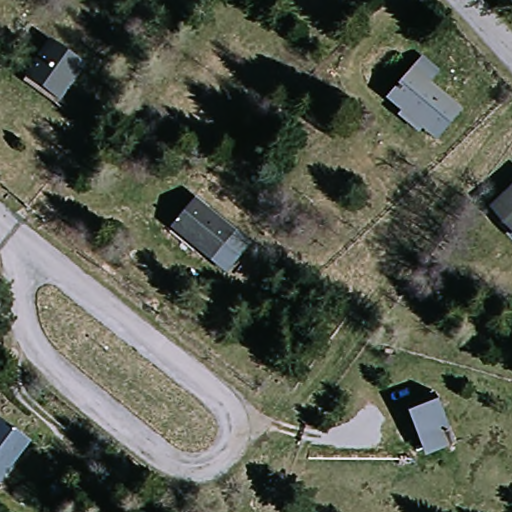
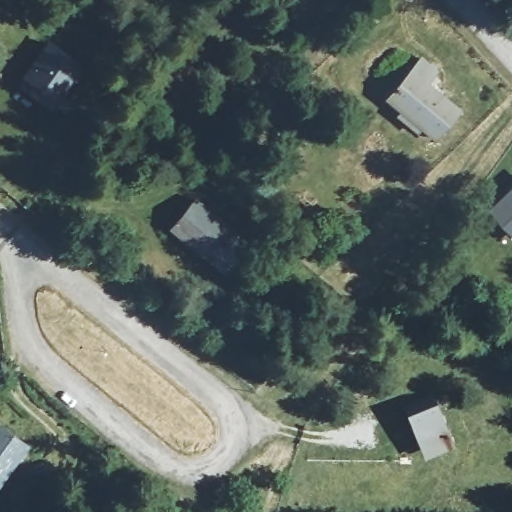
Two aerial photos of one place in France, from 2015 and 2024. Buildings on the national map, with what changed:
unchanged [(31,80),(37,74),(59,42),(88,62),(65,95),(60,102),(31,80)]
unchanged [(435,141),(387,100),(412,72),(422,60),(437,75),(427,86),(459,115),(435,141)]
unchanged [(238,229),(215,258),(176,227),(200,199),(238,229)]
unchanged [(499,213),(512,201),(512,229),(499,213)]
unchanged [(427,460),(424,450),(409,410),(430,400),(445,441),(450,450),(427,460)]
unchanged [(0,418),(33,442),(4,482),(1,488),(0,487),(0,418)]

